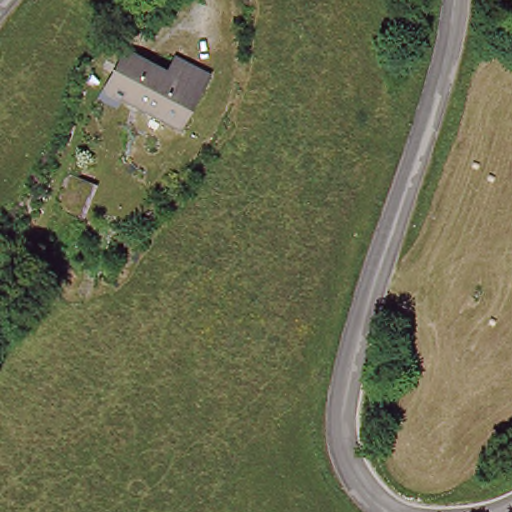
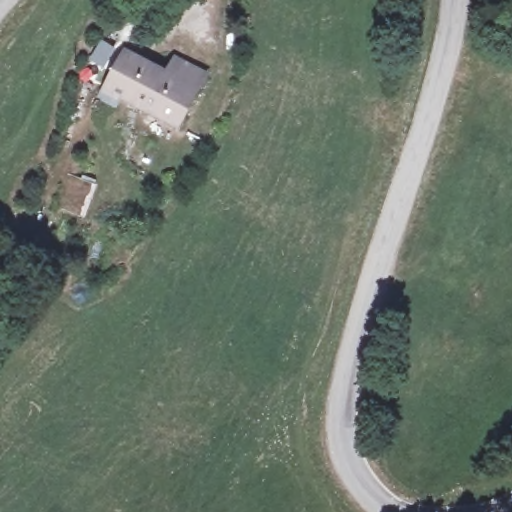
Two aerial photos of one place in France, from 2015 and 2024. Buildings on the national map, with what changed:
unchanged [(117,58),(159,72),(167,54),(205,67),(183,127),(100,96),(117,58)]

